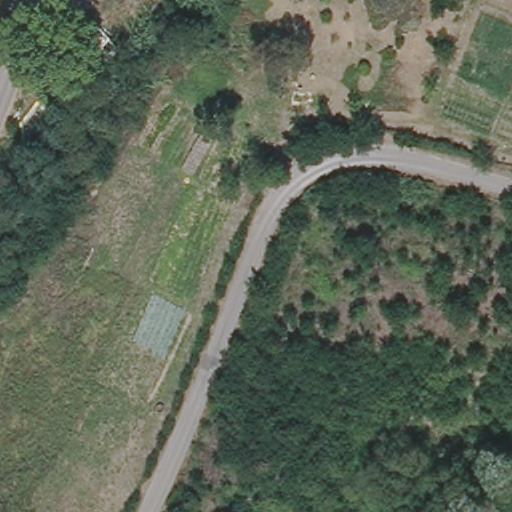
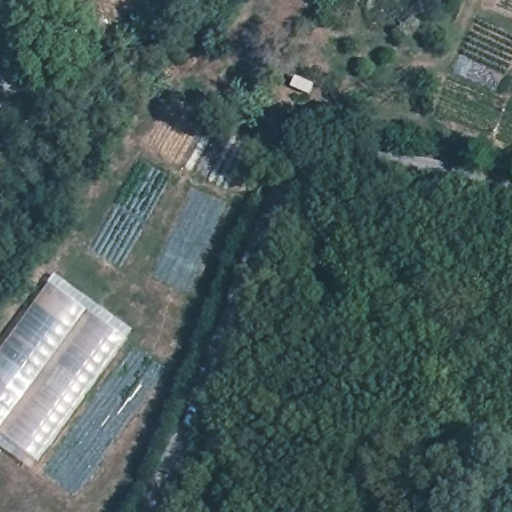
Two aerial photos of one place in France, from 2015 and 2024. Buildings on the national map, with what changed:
new [(128,339),(41,464),(0,433),(0,353),(50,285),(128,339)]

